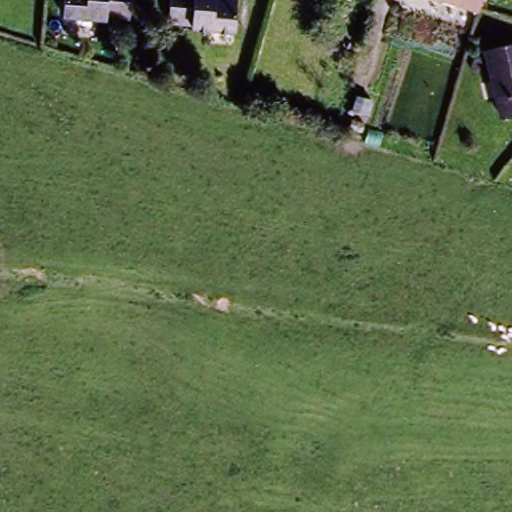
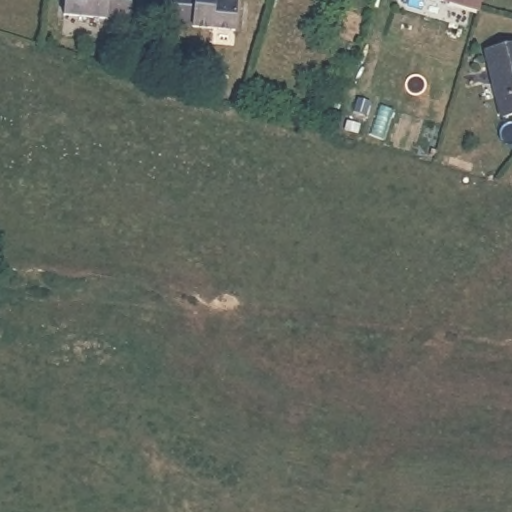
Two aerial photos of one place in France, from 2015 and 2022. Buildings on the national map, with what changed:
unchanged [(126,23),(104,21),(104,23),(60,18),(62,0),(129,0),(126,23)]
unchanged [(206,1),(229,4),(226,35),(181,29),(181,27),(163,24),(167,0),(206,0),(206,1)]
unchanged [(468,10),(436,0),(471,0),(468,10)]
unchanged [(484,52),(512,47),(512,114),(499,117),(484,52)]

